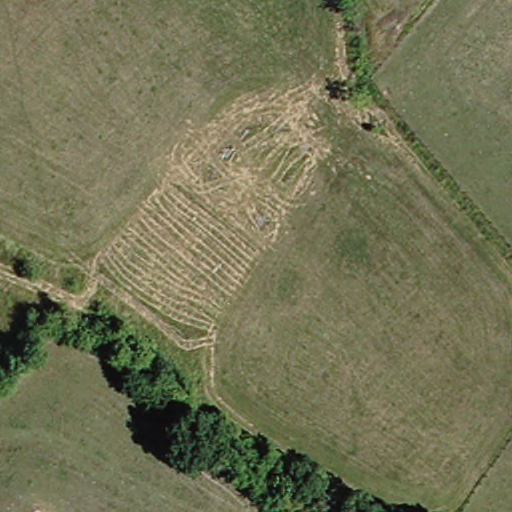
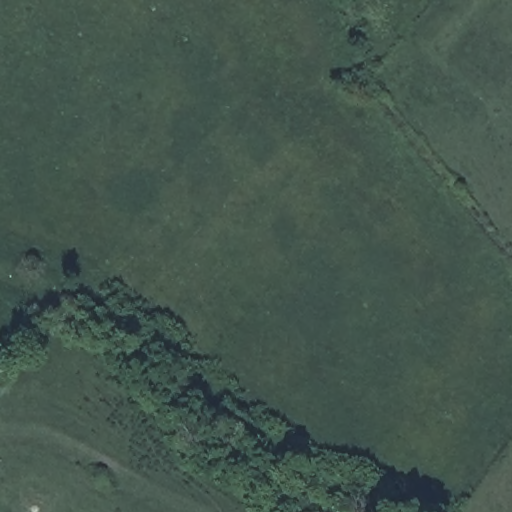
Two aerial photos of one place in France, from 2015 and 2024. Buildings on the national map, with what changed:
[]

